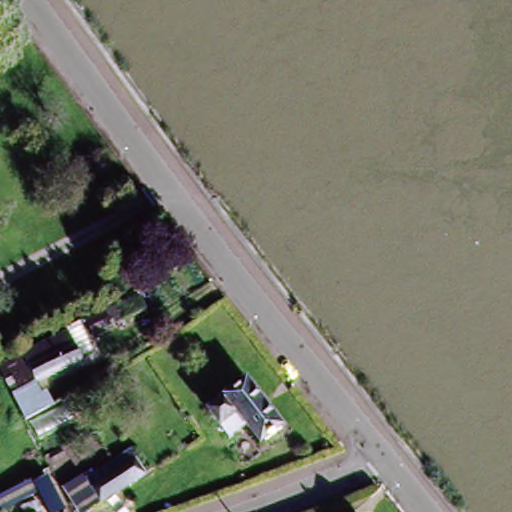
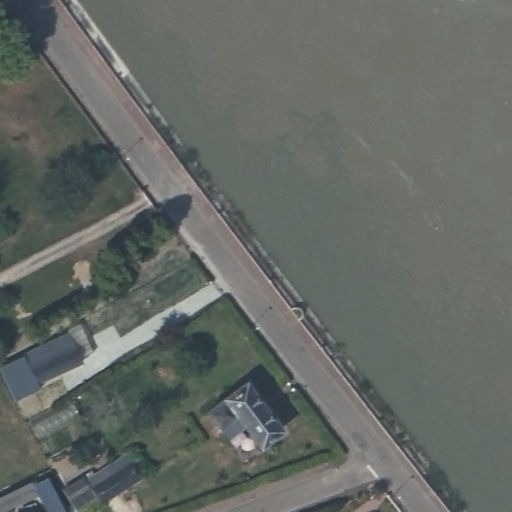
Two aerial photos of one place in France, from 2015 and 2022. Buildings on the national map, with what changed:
unchanged [(75,327),(93,318),(124,302),(132,315),(99,332),(82,341),(75,327)]
unchanged [(16,419),(5,397),(0,387),(0,366),(70,333),(83,357),(70,363),(70,365),(25,387),(35,409),(16,419)]
unchanged [(214,422),(202,405),(241,377),(276,422),(256,438),(237,415),(218,428),(214,422)]
unchanged [(143,470),(99,497),(85,475),(129,448),(143,470)]
unchanged [(63,504),(49,512),(33,477),(46,471),(63,504)]
unchanged [(83,491),(73,497),(65,483),(75,477),(83,491)]
unchanged [(21,495),(0,506),(0,494),(16,486),(21,495)]

